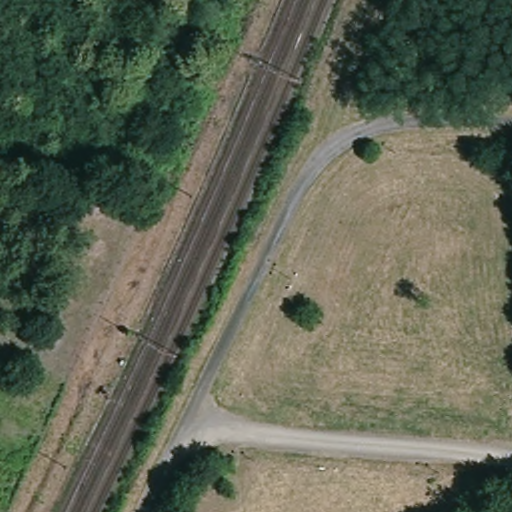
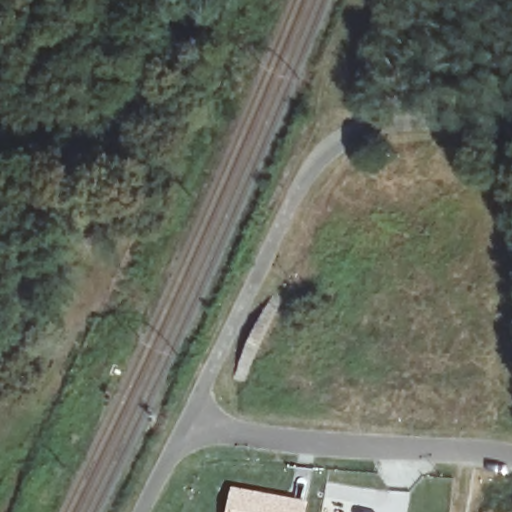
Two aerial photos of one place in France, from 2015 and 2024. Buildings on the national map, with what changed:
new [(231,486),(308,502),(306,512),(225,512),(231,486)]

